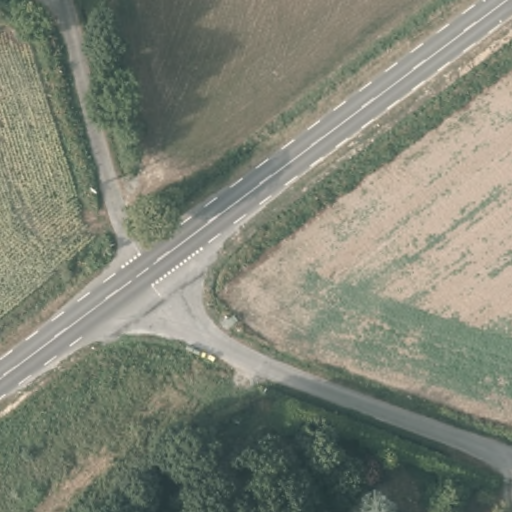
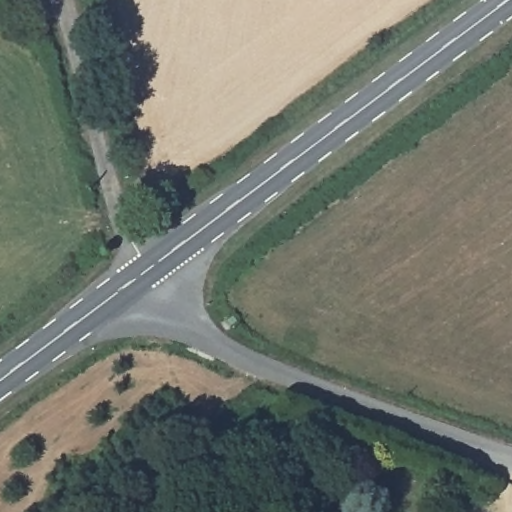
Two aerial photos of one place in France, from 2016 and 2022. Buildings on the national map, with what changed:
unchanged [(130,512),(144,495),(159,506),(154,512),(130,512)]

